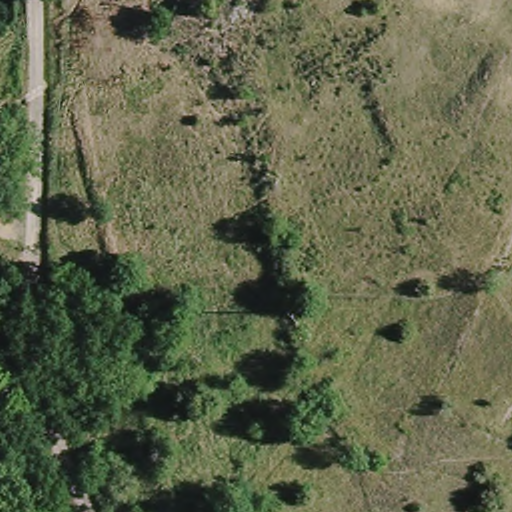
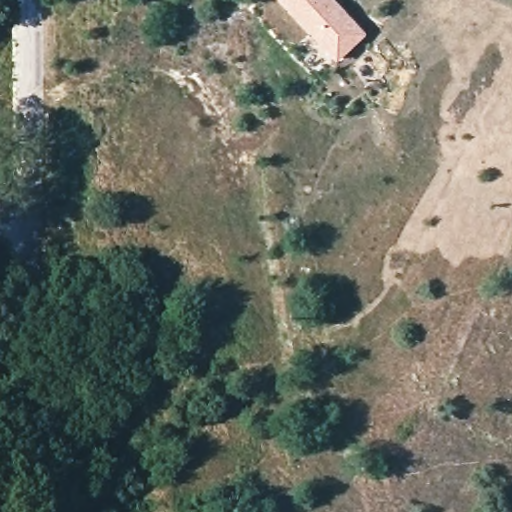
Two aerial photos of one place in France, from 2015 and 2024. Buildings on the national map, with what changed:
new [(336,61),(281,0),(337,0),(368,33),(336,61)]

